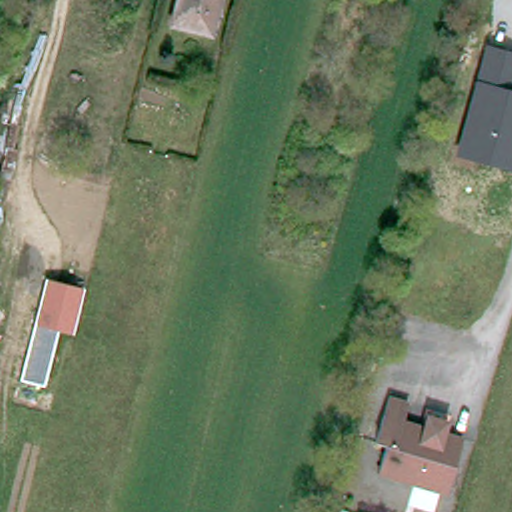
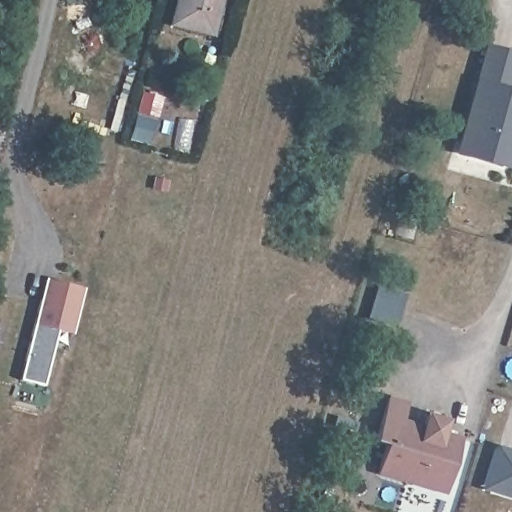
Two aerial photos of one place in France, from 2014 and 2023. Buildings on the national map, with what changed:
unchanged [(182,0),(224,0),(215,34),(175,24),(182,0)]
unchanged [(512,51),(512,88),(512,90),(512,168),(454,154),(482,44),(512,51)]
unchanged [(85,288),(75,334),(58,330),(44,386),(20,380),(45,277),(85,288)]
new [(380,291),(404,300),(393,329),(369,320),(380,291)]
unchanged [(395,446),(382,442),(395,400),(413,405),(407,426),(428,433),(432,418),(452,425),(449,436),(466,442),(450,494),(387,472),(395,446)]
new [(482,490),(497,445),(512,450),(512,500),(482,490)]

